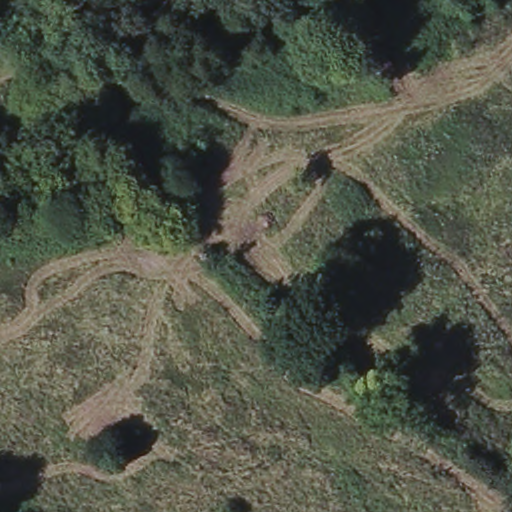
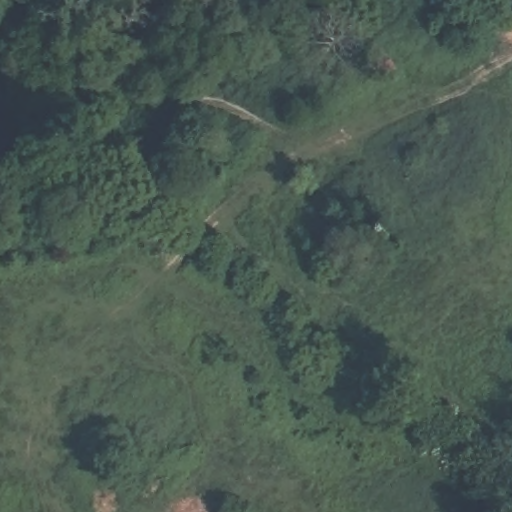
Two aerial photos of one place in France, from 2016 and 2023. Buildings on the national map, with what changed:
unchanged [(384,53),(397,71),(378,89),(364,69),(384,53)]
unchanged [(121,432),(141,448),(128,463),(108,446),(121,432)]

